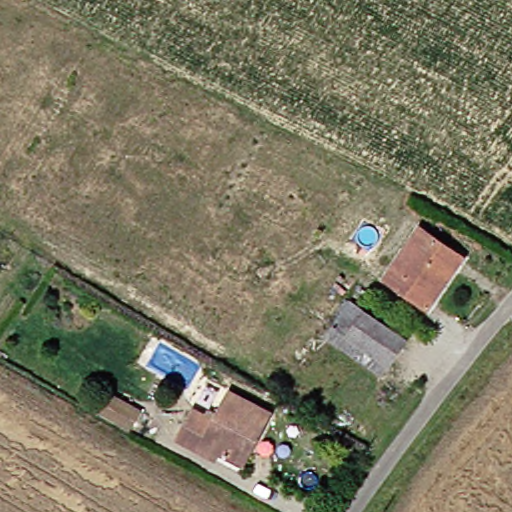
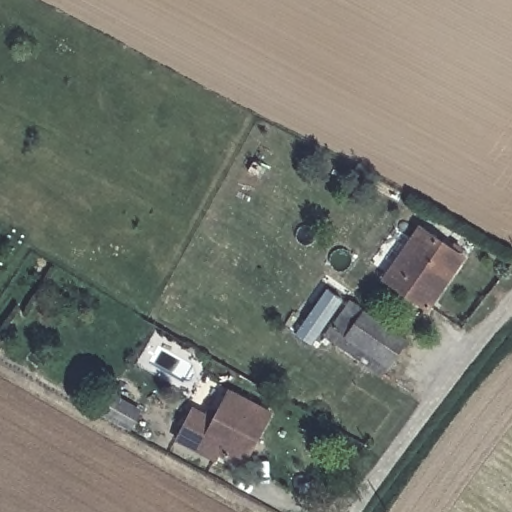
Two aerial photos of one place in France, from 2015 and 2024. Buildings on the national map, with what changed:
unchanged [(453,256),(419,308),(376,278),(410,226),(453,256)]
unchanged [(387,334),(365,369),(323,340),(346,304),(387,334)]
unchanged [(224,458),(206,448),(201,458),(185,449),(164,438),(181,407),(203,418),(220,389),(261,410),(246,440),(234,463),(224,458)]
unchanged [(139,417),(129,435),(98,419),(107,402),(139,417)]

